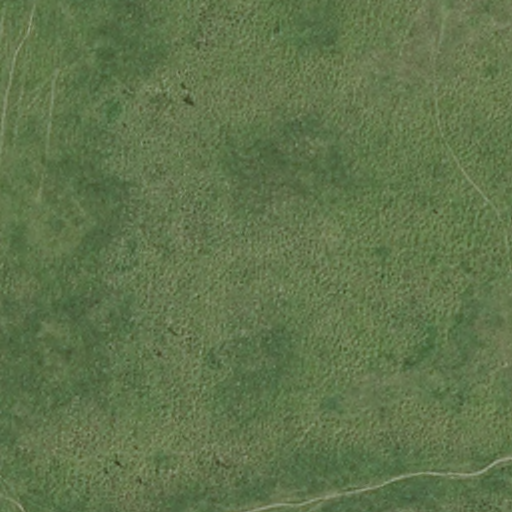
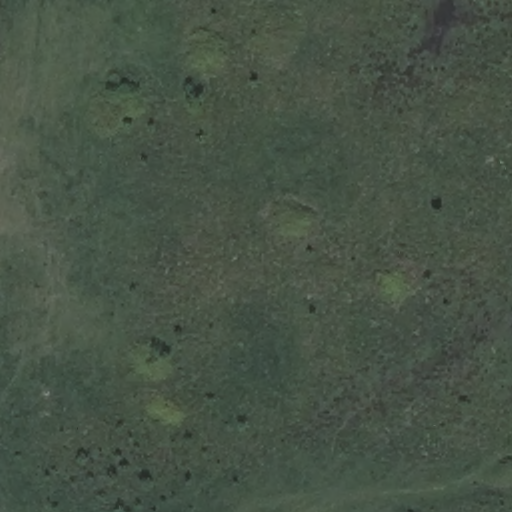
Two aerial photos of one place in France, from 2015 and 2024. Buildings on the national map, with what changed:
[]

